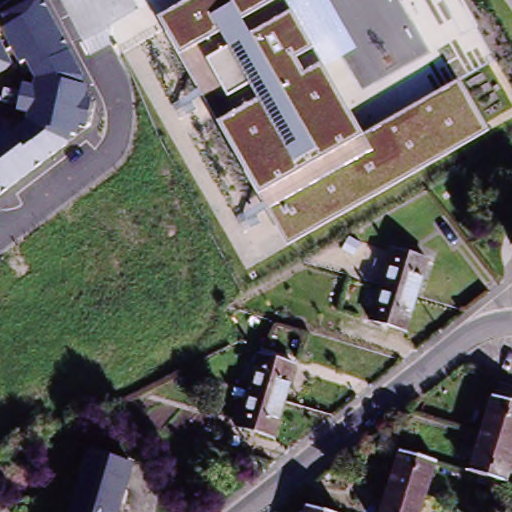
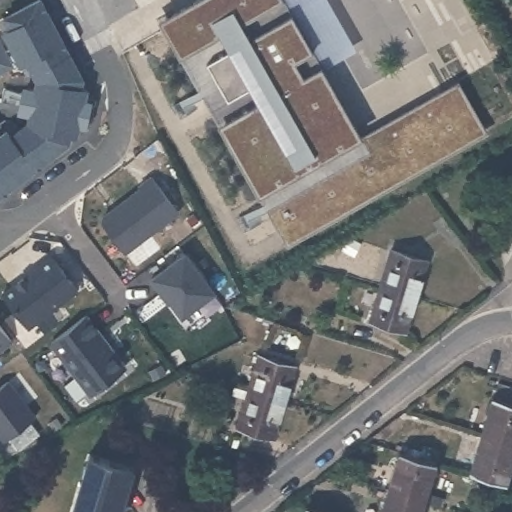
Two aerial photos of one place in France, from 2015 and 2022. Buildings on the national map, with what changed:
unchanged [(4,130),(9,137),(23,125),(26,117),(18,115),(23,83),(34,84),(34,78),(25,62),(18,66),(17,63),(0,74),(0,35),(3,34),(0,30),(7,27),(2,18),(36,0),(44,0),(85,78),(84,86),(90,88),(80,138),(71,136),(69,144),(0,197),(0,125),(4,130)]
unchanged [(193,0),(284,0),(364,137),(459,81),(488,132),(289,244),(260,195),(219,124),(181,56),(158,19),(193,0)]
new [(139,188),(154,179),(179,213),(125,253),(100,220),(141,189),(139,188)]
unchanged [(381,290),(392,253),(428,263),(416,301),(381,290)]
new [(53,255),(78,289),(29,326),(3,292),(53,255)]
new [(161,292),(151,279),(183,256),(211,292),(182,314),(172,300),(169,303),(161,292)]
unchanged [(406,335),(371,325),(381,290),(416,301),(406,335)]
new [(101,334),(97,337),(107,350),(113,349),(125,366),(93,391),(53,340),(86,315),(101,334)]
new [(11,340),(0,349),(0,325),(11,340)]
unchanged [(251,396),(261,361),(296,371),(286,406),(251,396)]
new [(7,381),(33,415),(4,437),(0,432),(0,386),(7,381)]
unchanged [(274,444),(240,434),(251,396),(286,406),(274,444)]
unchanged [(512,406),(512,448),(481,439),(493,400),(512,406)]
new [(27,420),(36,432),(19,445),(10,433),(27,420)]
unchanged [(512,466),(505,488),(469,476),(481,439),(512,448),(512,466)]
unchanged [(437,466),(425,504),(387,492),(399,454),(437,466)]
unchanged [(131,473),(120,512),(73,512),(88,460),(131,473)]
unchanged [(381,512),(387,492),(425,504),(423,512),(381,512)]

